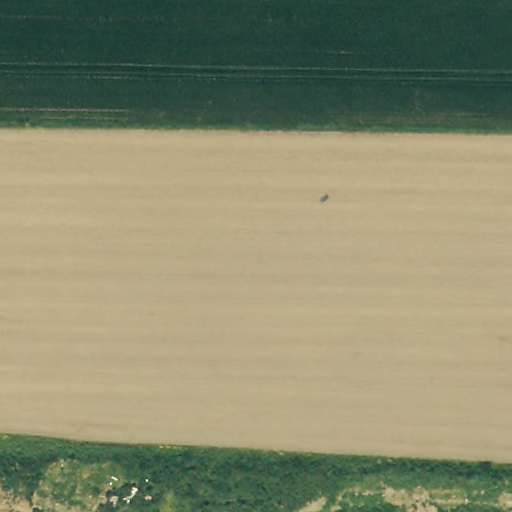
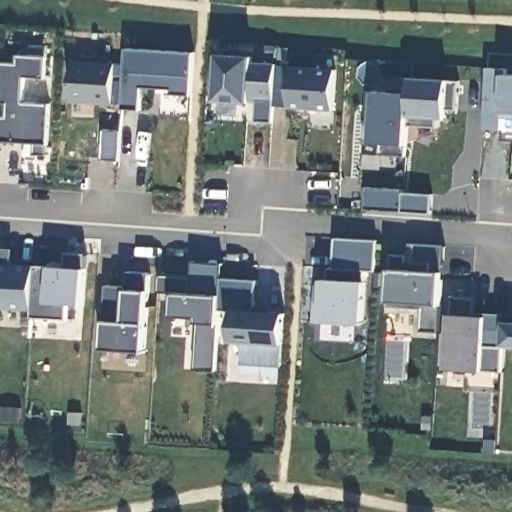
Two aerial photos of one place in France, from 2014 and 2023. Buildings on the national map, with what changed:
new [(127,49),(194,53),(191,96),(172,95),(172,90),(142,88),(141,111),(123,110),(127,49)]
new [(276,66),(275,92),(272,123),(258,121),(260,104),(252,103),(217,100),(220,54),(255,56),(254,63),(276,66)]
new [(1,61),(18,63),(19,55),(48,56),(47,79),(27,77),(25,102),(51,104),(47,156),(34,155),(35,144),(0,141),(0,74),(1,66),(1,61)]
new [(74,61),(116,64),(113,105),(71,101),(74,61)]
new [(0,74),(0,66),(1,66),(0,74)]
new [(292,66),(336,70),(333,110),(289,107),(292,66)]
new [(487,68),(507,69),(507,74),(512,74),(512,118),(502,117),(502,130),(483,128),(487,68)]
new [(411,89),(412,78),(460,81),(457,111),(447,110),(446,118),(438,117),(437,128),(408,126),(411,89)]
new [(368,91),(375,91),(390,92),(390,87),(411,89),(408,126),(407,128),(406,157),(380,155),(381,143),(365,142),(367,120),(368,91)]
new [(432,214),(402,212),(365,210),(367,187),(403,190),(403,192),(433,194),(432,214)]
new [(328,279),(329,267),(333,268),(336,238),(377,241),(376,272),(366,271),(362,324),(314,321),(316,293),(322,294),(323,284),(323,279),(328,279)]
new [(405,255),(406,252),(410,253),(410,243),(416,243),(445,245),(442,280),(439,333),(421,332),(422,309),(388,307),(392,254),(405,255)]
new [(14,249),(12,266),(36,267),(32,310),(0,307),(0,248),(7,249),(14,249)]
new [(32,310),(36,267),(36,266),(66,268),(67,253),(87,255),(83,305),(69,304),(67,321),(32,318),(32,310)]
new [(192,261),(224,263),(222,278),(257,281),(256,307),(272,308),(272,313),(285,314),(282,366),(242,364),(244,341),(232,340),(234,311),(220,310),(216,371),(195,369),(198,318),(172,316),(174,293),(159,292),(160,274),(192,276),(192,261)]
new [(107,285),(127,287),(128,272),(151,273),(145,353),(102,350),(107,285)]
new [(505,315),(512,315),(512,346),(503,345),(505,315)]

